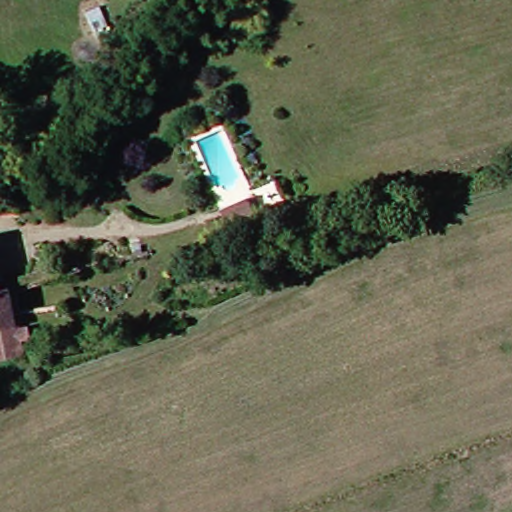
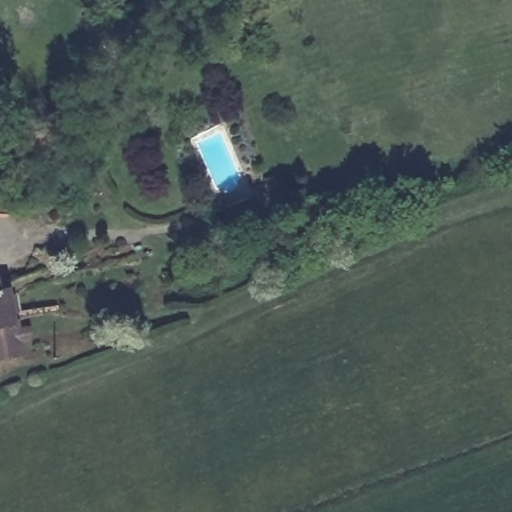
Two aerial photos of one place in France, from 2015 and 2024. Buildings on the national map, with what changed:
unchanged [(15,306),(53,302),(56,320),(34,325),(37,350),(0,359),(0,287),(0,290),(13,290),(15,306)]

